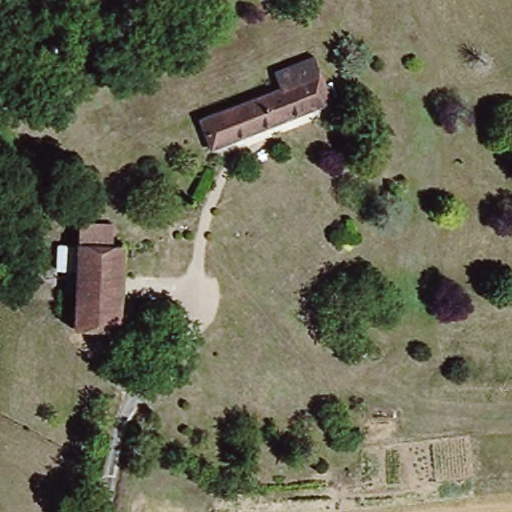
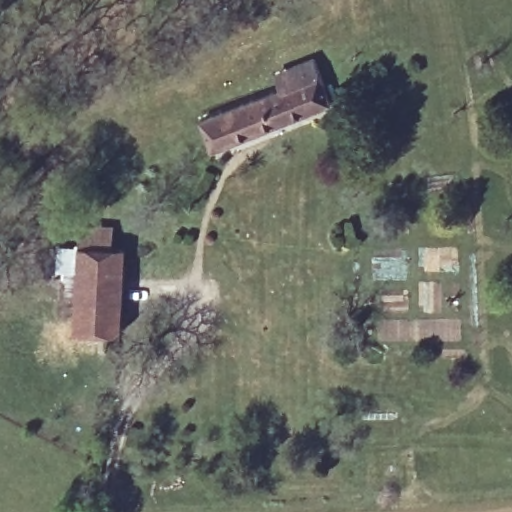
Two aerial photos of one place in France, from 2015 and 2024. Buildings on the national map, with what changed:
unchanged [(210,159),(197,125),(277,93),(269,73),(307,58),(327,111),(210,159)]
unchanged [(81,229),(111,231),(110,249),(125,249),(119,337),(74,335),(81,229)]

